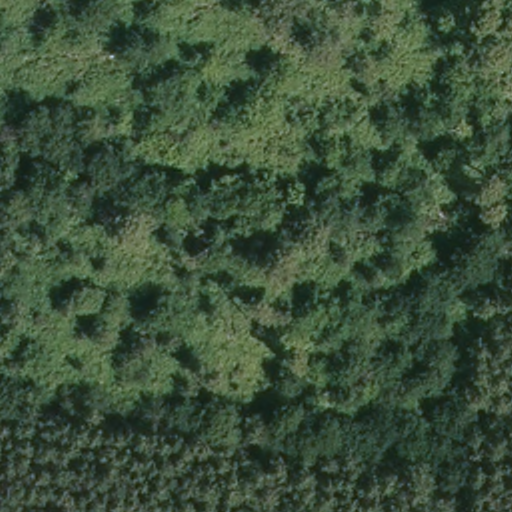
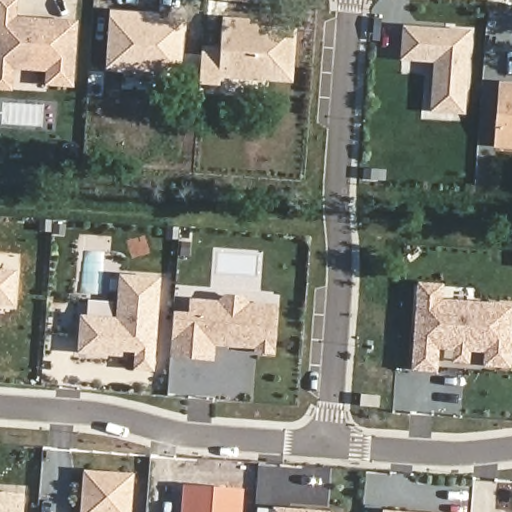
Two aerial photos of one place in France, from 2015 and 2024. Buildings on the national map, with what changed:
new [(2,0),(8,0),(20,1),(18,19),(47,21),(55,22),(80,24),(75,86),(51,85),(51,70),(15,67),(14,89),(0,88),(0,33),(2,0)]
new [(111,14),(145,16),(144,36),(156,37),(156,26),(181,29),(178,74),(107,69),(111,14)]
new [(206,54),(224,55),(227,20),(261,22),(260,42),(271,42),(272,29),(298,30),(295,64),(281,62),(280,79),(224,75),(223,85),(203,83),(206,54)]
new [(440,63),(410,61),(413,27),(473,32),(468,101),(467,112),(436,110),(437,99),(440,63)]
new [(512,131),(501,130),(505,85),(512,85),(512,131)]
new [(512,131),(512,147),(500,146),(501,130),(512,131)]
new [(18,274),(16,305),(0,304),(0,273),(18,274)]
new [(88,316),(124,319),(127,275),(165,278),(158,368),(141,367),(143,350),(117,348),(117,353),(85,350),(88,316)]
new [(439,371),(416,369),(420,326),(423,285),(444,286),(443,301),(512,307),(512,361),(512,367),(488,365),(489,352),(471,350),(470,362),(457,362),(458,349),(440,347),(439,371)]
new [(180,312),(196,314),(197,299),(225,301),(233,295),(249,296),(255,304),(283,306),(279,352),(262,351),(263,346),(241,345),(242,340),(236,340),(235,344),(220,343),(218,358),(177,355),(180,312)]
new [(135,476),(132,512),(86,512),(89,473),(135,476)]
new [(246,492),(244,512),(189,512),(191,487),(231,491),(246,492)]
new [(28,495),(26,512),(0,512),(0,493),(28,495)]
new [(297,510),(297,512),(278,512),(279,509),(297,510)]
new [(315,512),(306,512),(306,511),(315,512)]

